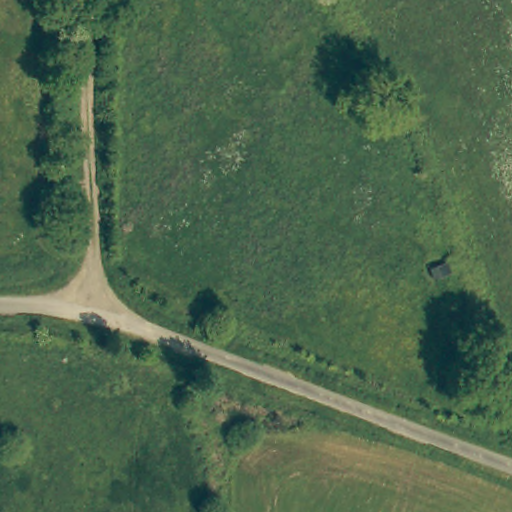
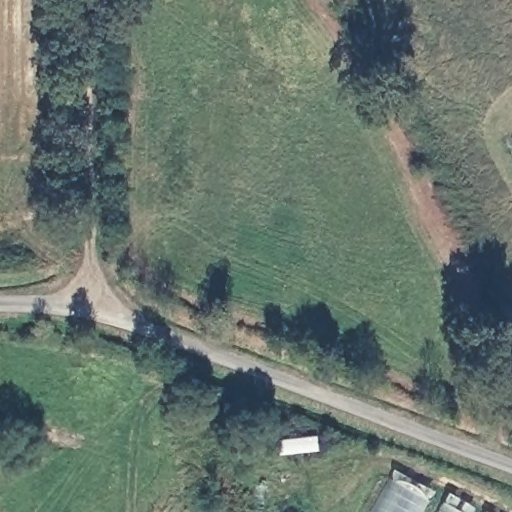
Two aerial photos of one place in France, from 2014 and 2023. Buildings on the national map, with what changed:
new [(427,501),(421,512),(375,512),(392,481),(427,501)]
new [(459,512),(440,512),(444,504),(459,512)]

